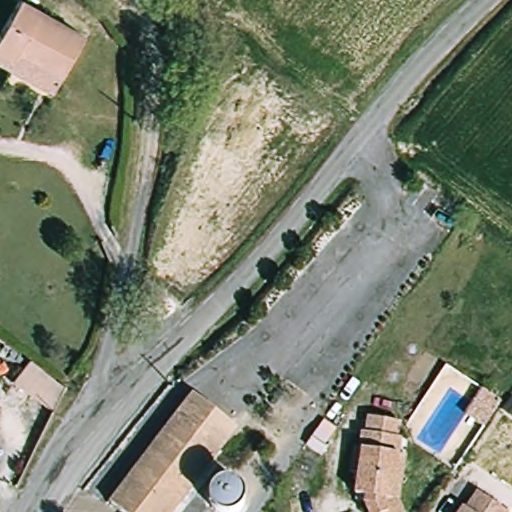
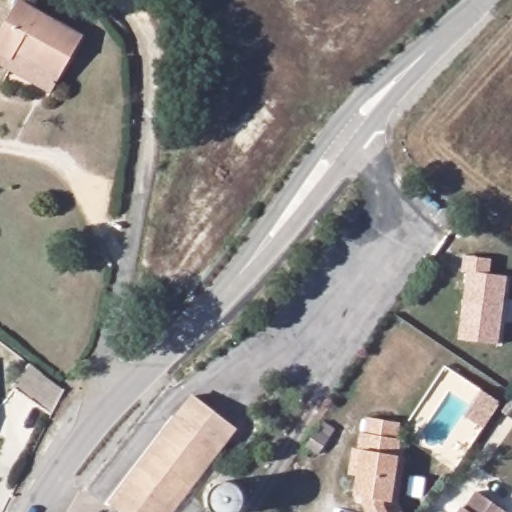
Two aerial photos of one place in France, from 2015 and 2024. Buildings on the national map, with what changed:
unchanged [(0,67),(0,32),(17,1),(82,38),(61,76),(15,52),(12,58),(5,70),(0,67)]
new [(488,272),(461,271),(463,255),(490,257),(488,272)]
new [(505,275),(504,292),(498,344),(459,341),(466,271),(488,272),(505,275)]
unchanged [(49,417),(11,388),(29,367),(63,392),(49,417)]
unchanged [(483,390),(501,402),(484,427),(466,415),(483,390)]
unchanged [(193,393),(237,430),(231,439),(171,512),(121,512),(106,501),(190,400),(193,393)]
unchanged [(363,507),(365,497),(356,496),(359,477),(351,475),(355,450),(362,451),(365,437),(370,438),(372,425),(400,429),(397,443),(402,443),(400,459),(407,460),(403,485),(398,512),(366,512),(363,507)]
unchanged [(503,510),(502,512),(453,512),(458,504),(460,506),(474,490),(503,510)]

